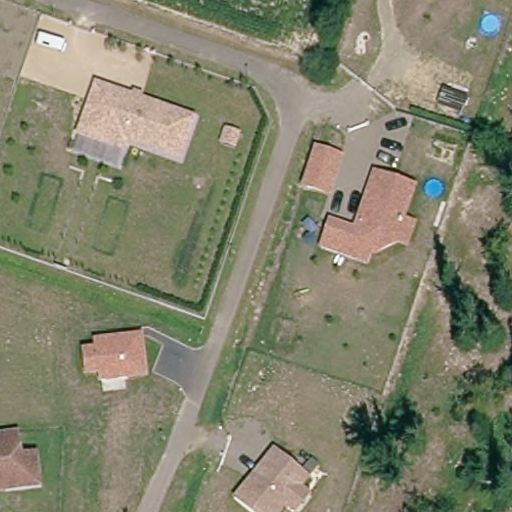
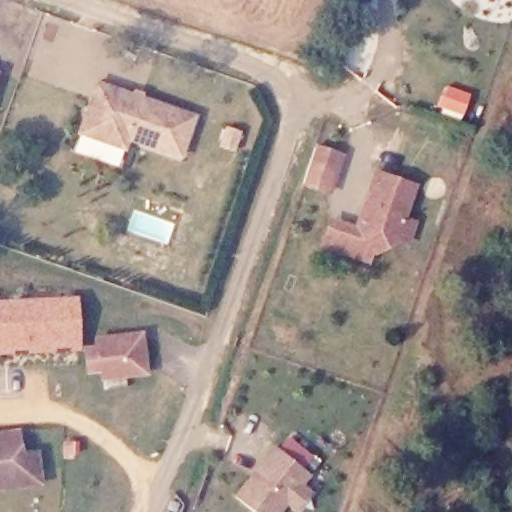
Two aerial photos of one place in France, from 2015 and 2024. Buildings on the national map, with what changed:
unchanged [(79,136),(75,135),(94,81),(197,115),(182,159),(127,142),(120,168),(74,153),(79,136)]
unchanged [(315,145),(345,154),(331,195),(301,185),(315,145)]
unchanged [(319,247),(330,216),(355,225),(374,171),(416,185),(406,218),(417,221),(408,246),(396,244),(372,257),(369,266),(319,247)]
new [(77,297),(81,347),(81,349),(0,354),(0,300),(77,297)]
unchanged [(143,329),(150,375),(99,381),(97,371),(84,373),(81,347),(94,343),(93,335),(143,329)]
unchanged [(19,431),(20,452),(34,452),(35,476),(35,484),(6,486),(0,486),(0,432),(19,431)]
unchanged [(312,476),(304,485),(313,492),(297,512),(293,512),(286,506),(281,512),(253,512),(234,495),(275,447),(312,476)]

